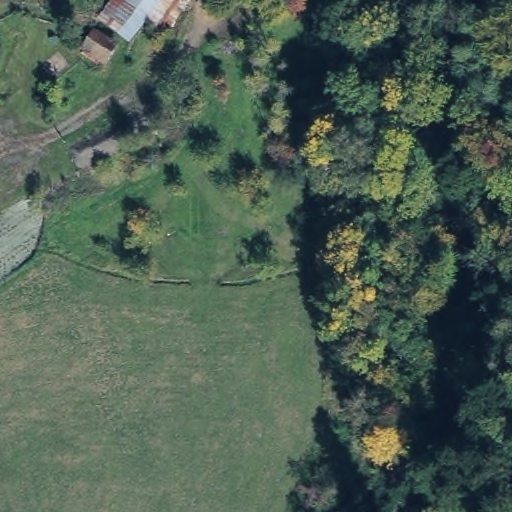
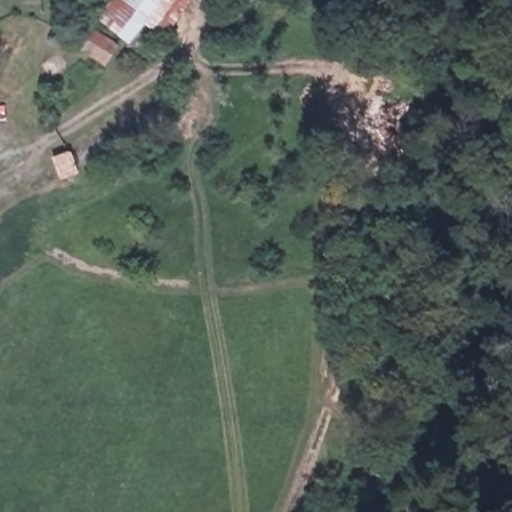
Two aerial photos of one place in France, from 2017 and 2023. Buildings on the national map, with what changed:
unchanged [(170,40),(146,28),(124,53),(87,36),(109,0),(193,0),(170,40)]

